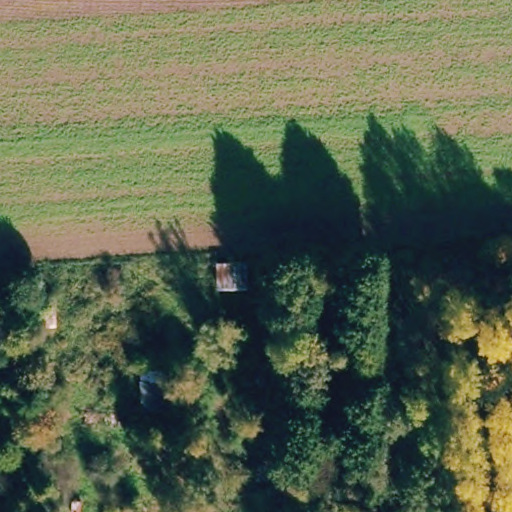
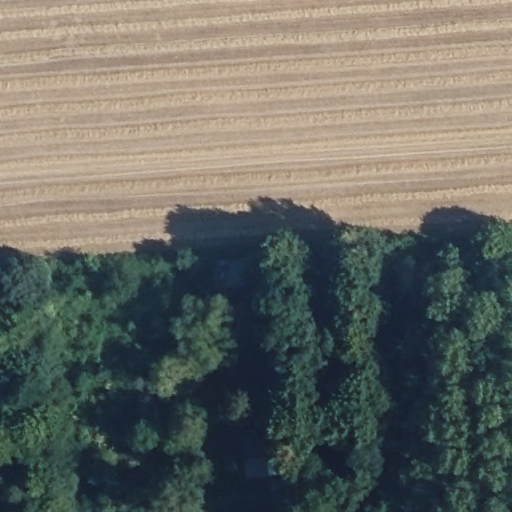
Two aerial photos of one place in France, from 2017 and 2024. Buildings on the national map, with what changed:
unchanged [(135,366),(168,364),(170,404),(138,407),(135,366)]
unchanged [(5,427),(0,427),(0,400),(3,401),(5,427)]
unchanged [(134,432),(148,436),(149,460),(155,461),(157,473),(167,474),(168,496),(136,499),(134,432)]

